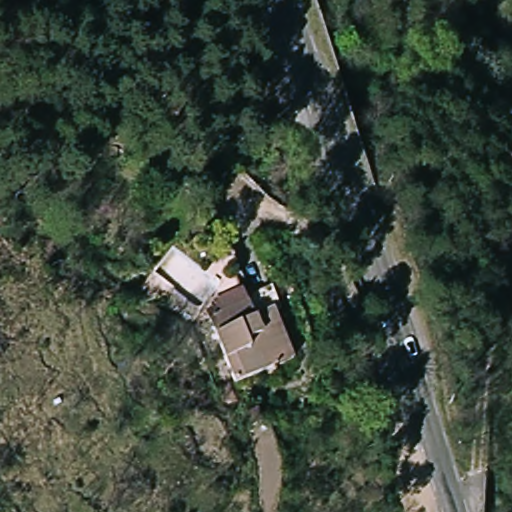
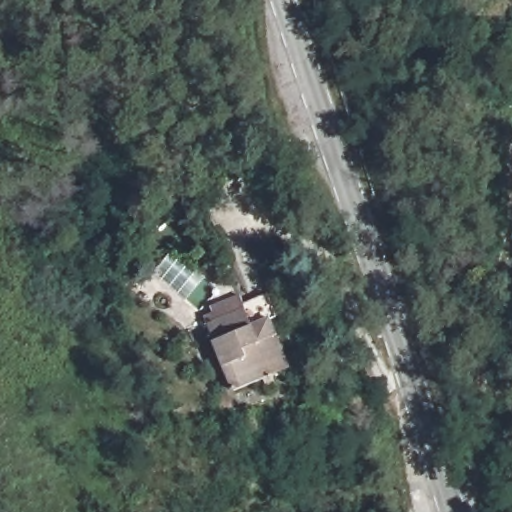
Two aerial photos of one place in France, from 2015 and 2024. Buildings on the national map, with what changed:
unchanged [(242,391),(224,344),(206,310),(244,294),(250,324),(276,316),(300,369),(242,391)]
unchanged [(160,370),(173,369),(175,388),(161,387),(160,370)]

